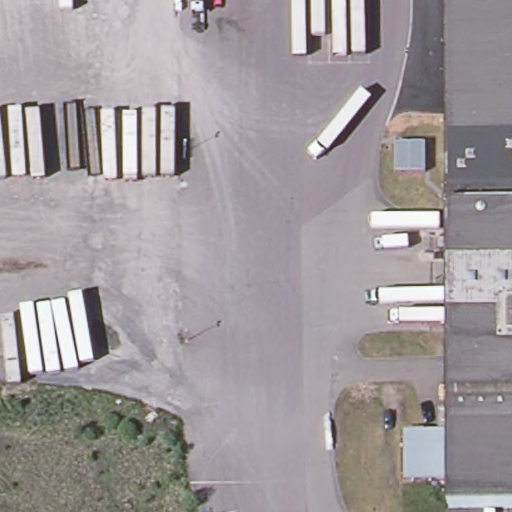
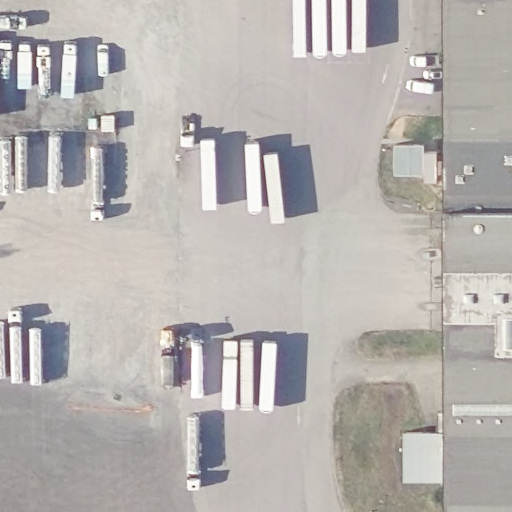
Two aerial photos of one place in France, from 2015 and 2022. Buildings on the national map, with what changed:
unchanged [(455,0),(512,0),(512,507),(452,507),(455,0)]

